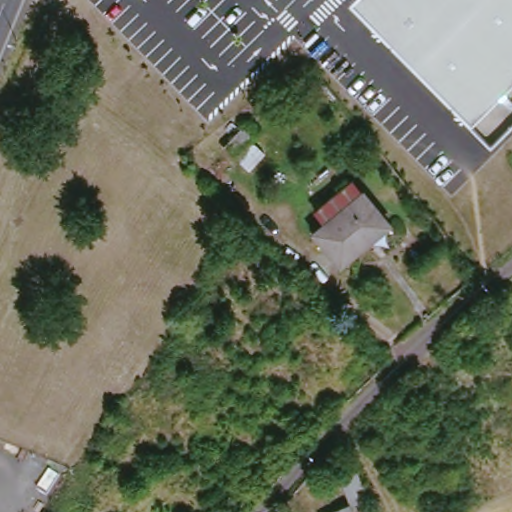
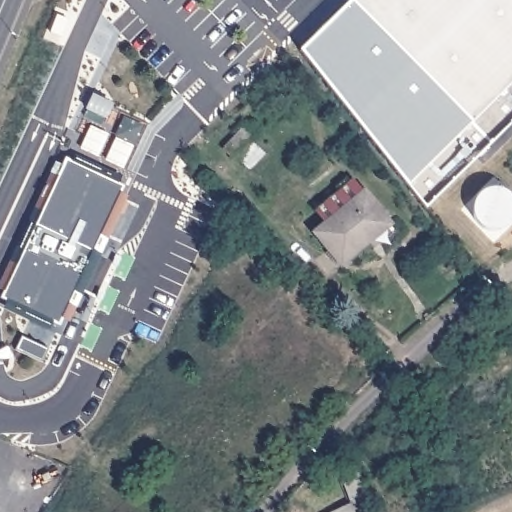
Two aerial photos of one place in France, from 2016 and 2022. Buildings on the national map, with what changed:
new [(489,141),(427,209),(301,50),(347,0),(489,141)]
unchanged [(512,119),(489,141),(347,0),(512,0),(512,119)]
new [(127,187),(60,325),(0,299),(0,294),(66,159),(127,187)]
unchanged [(367,249),(342,270),(316,239),(327,229),(317,216),(353,186),(362,199),(365,197),(388,225),(391,229),(367,249)]
unchanged [(335,475),(351,469),(363,500),(355,502),(359,512),(322,512),(345,500),(335,475)]

